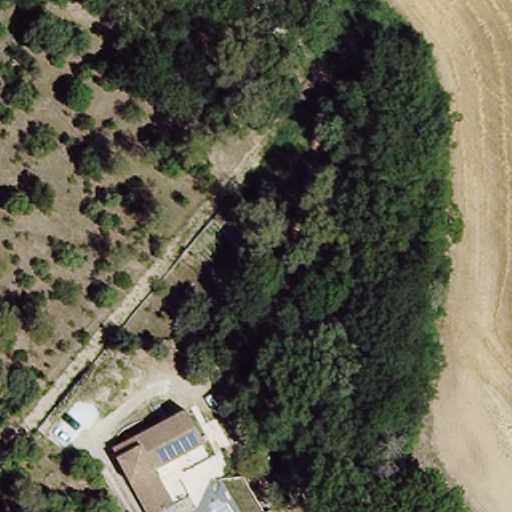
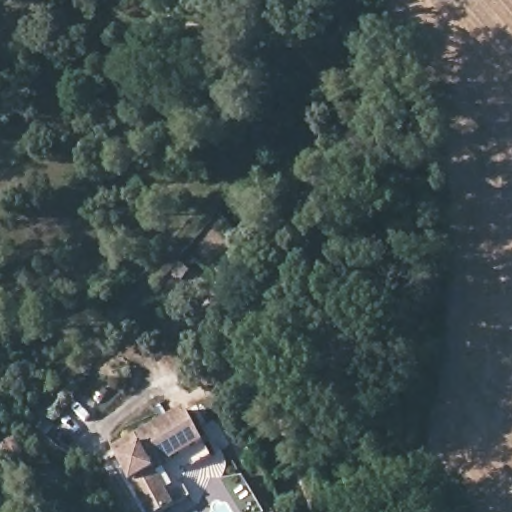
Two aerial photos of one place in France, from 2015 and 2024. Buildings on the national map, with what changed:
unchanged [(210,450),(217,464),(185,482),(196,503),(180,512),(148,512),(123,465),(118,456),(136,446),(191,417),(210,450)]

